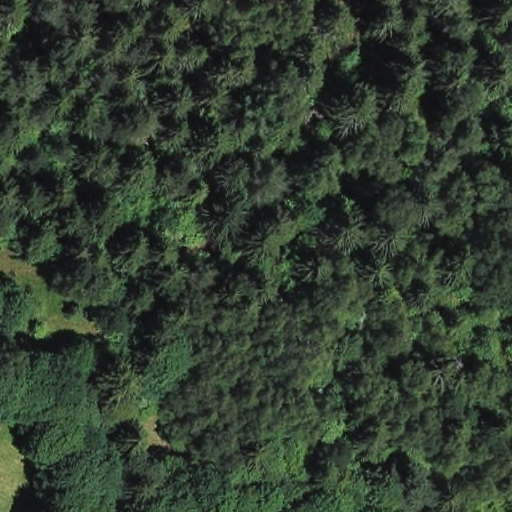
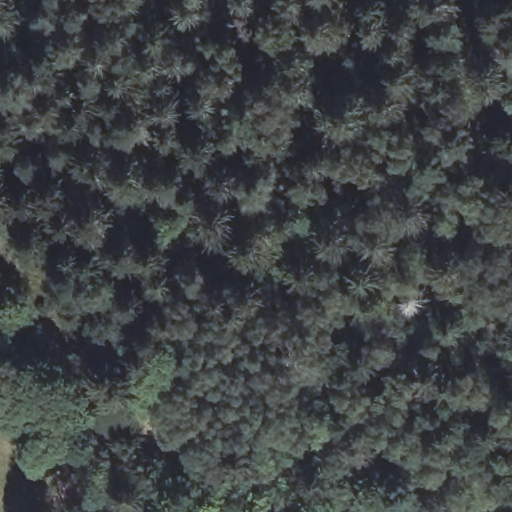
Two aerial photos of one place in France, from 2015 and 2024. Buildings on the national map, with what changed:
[]

